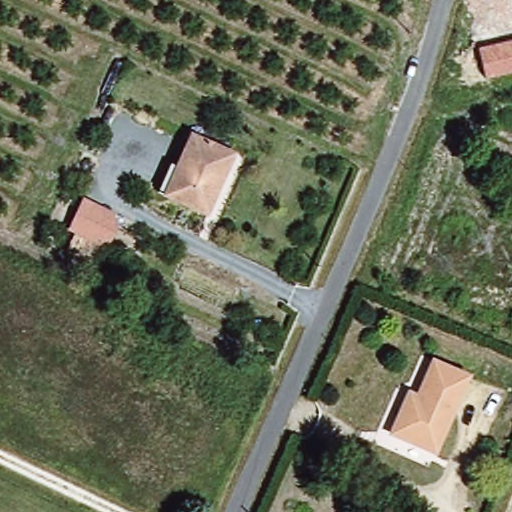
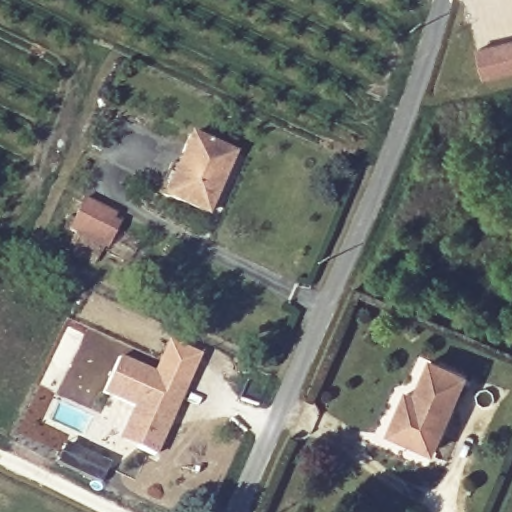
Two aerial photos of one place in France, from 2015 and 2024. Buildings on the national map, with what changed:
unchanged [(478,48),(512,40),(512,72),(485,79),(478,48)]
unchanged [(169,160),(177,164),(190,136),(226,154),(235,159),(224,185),(211,212),(171,193),(157,186),(169,160)]
unchanged [(105,256),(99,253),(66,236),(83,202),(115,218),(111,227),(117,230),(105,256)]
unchanged [(437,459),(390,439),(411,390),(420,394),(437,355),(475,372),(437,459)]
new [(188,386),(158,456),(120,439),(133,407),(103,393),(119,356),(188,386)]

